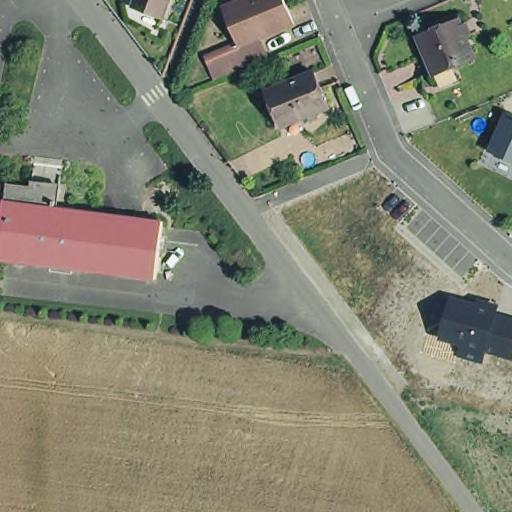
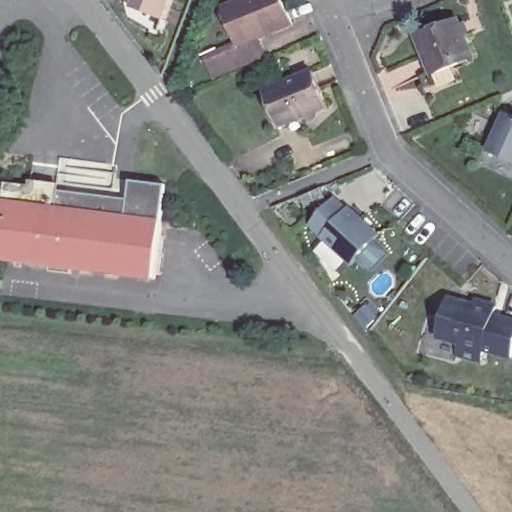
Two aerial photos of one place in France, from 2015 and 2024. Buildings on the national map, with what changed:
unchanged [(136,6),(139,0),(174,0),(167,18),(136,6)]
unchanged [(292,0),(298,14),(265,27),(242,36),(241,31),(227,0),(292,0)]
unchanged [(431,61),(418,30),(458,14),(474,51),(451,60),(433,67),(431,61)]
unchanged [(208,45),(241,31),(242,36),(265,27),(273,46),(218,69),(208,45)]
unchanged [(312,110),(309,105),(288,115),(279,118),(264,82),(274,79),(318,60),(333,95),(319,101),(321,106),(312,110)]
unchanged [(512,116),(512,162),(489,151),(506,114),(512,116)]
new [(163,220),(64,206),(65,191),(128,200),(131,180),(168,185),(163,220)]
unchanged [(1,255),(8,200),(11,200),(14,182),(65,190),(64,206),(167,220),(161,277),(1,255)]
new [(354,266),(309,226),(336,195),(381,234),(354,266)]
unchanged [(477,302),(478,298),(499,305),(497,314),(512,318),(512,361),(485,352),(482,365),(456,357),(461,345),(439,340),(451,296),(477,302)]

